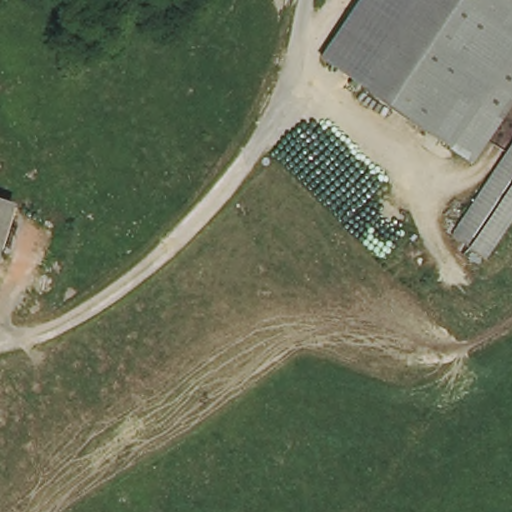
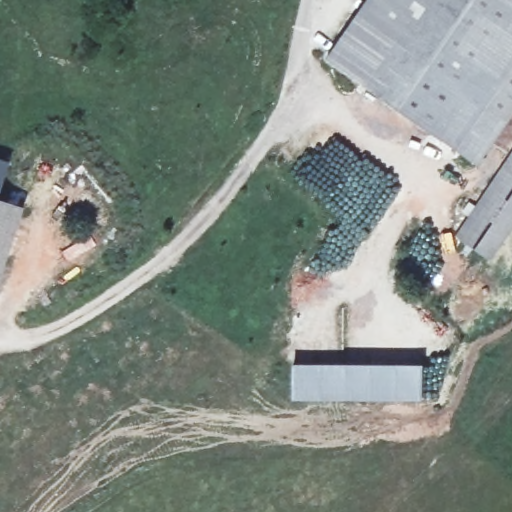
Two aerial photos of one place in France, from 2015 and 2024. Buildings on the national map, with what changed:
unchanged [(368,0),(425,0),(369,89),(328,61),(368,0)]
unchanged [(512,0),(512,60),(486,100),(505,114),(477,161),(369,89),(425,0),(512,0)]
unchanged [(486,100),(512,60),(512,105),(505,114),(486,100)]
unchanged [(512,221),(491,255),(456,233),(512,143),(512,221)]
new [(7,161),(0,183),(0,159),(7,161)]
unchanged [(14,203),(0,248),(0,199),(14,203)]
new [(420,363),(421,400),(290,401),(290,364),(420,363)]

